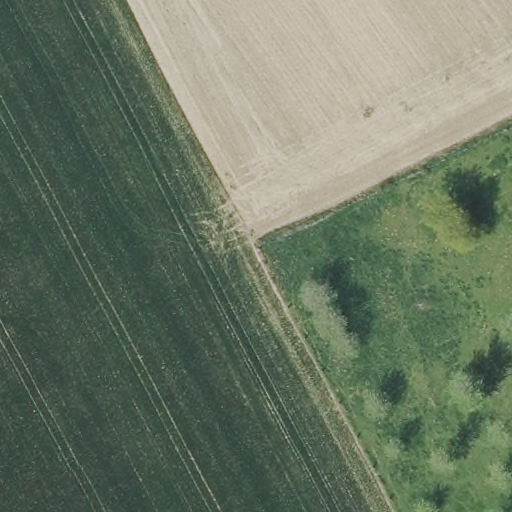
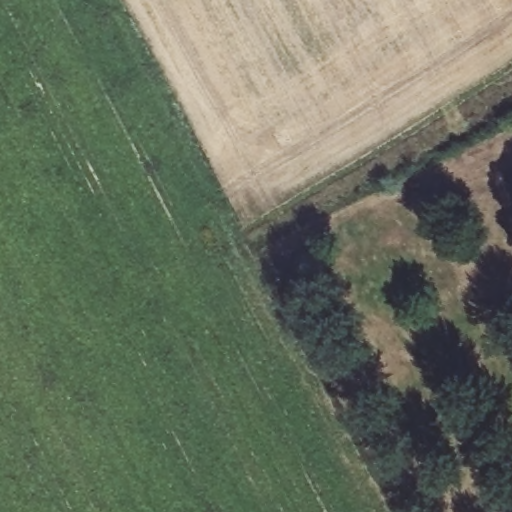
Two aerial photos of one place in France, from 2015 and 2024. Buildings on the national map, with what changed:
[]

